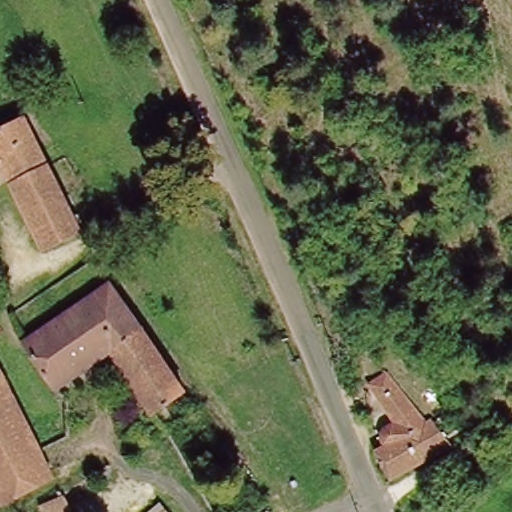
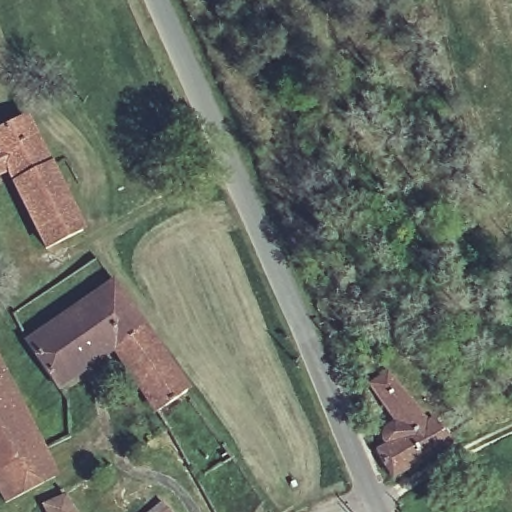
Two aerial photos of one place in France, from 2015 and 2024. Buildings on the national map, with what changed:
unchanged [(87,231),(47,250),(6,178),(0,180),(0,134),(28,121),(87,231)]
unchanged [(58,387),(26,341),(110,284),(141,334),(117,349),(58,387)]
unchanged [(161,413),(117,349),(141,334),(183,395),(161,413)]
unchanged [(0,474),(0,361),(47,451),(0,474)]
unchanged [(388,427),(368,391),(377,386),(376,381),(397,370),(448,454),(390,481),(373,452),(382,447),(375,435),(388,427)]
unchanged [(236,462),(213,479),(203,465),(227,449),(236,462)]
unchanged [(7,507),(0,492),(0,474),(47,451),(60,478),(56,481),(7,507)]
unchanged [(66,498),(75,512),(46,512),(66,498)]

